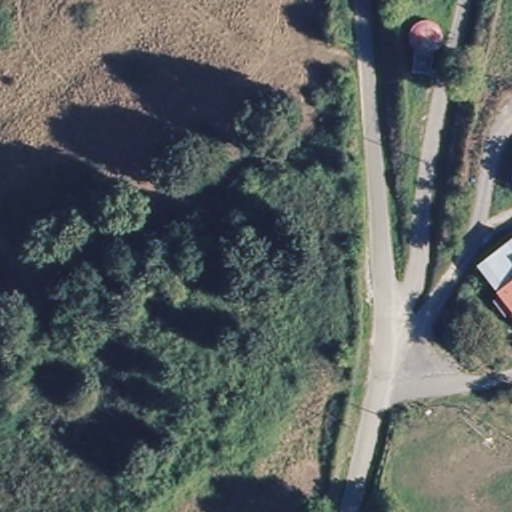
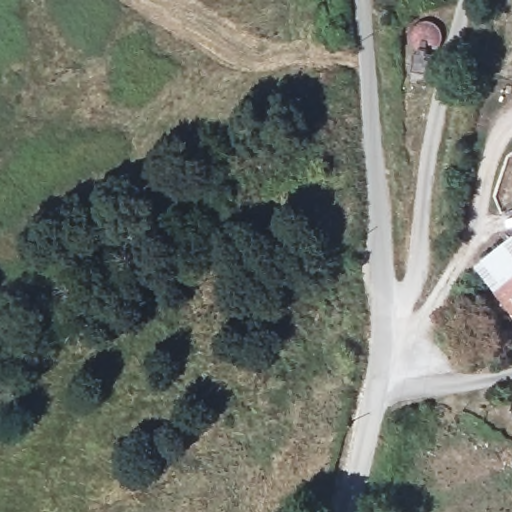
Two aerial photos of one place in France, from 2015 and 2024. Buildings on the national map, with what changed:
unchanged [(479,261),(512,237),(512,283),(502,290),(479,261)]
unchanged [(512,283),(512,305),(502,290),(512,283)]

